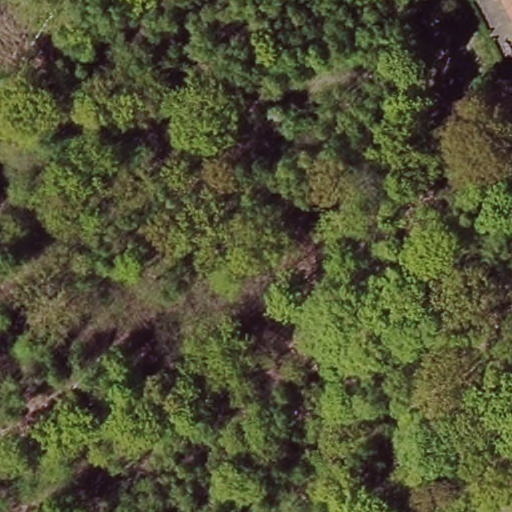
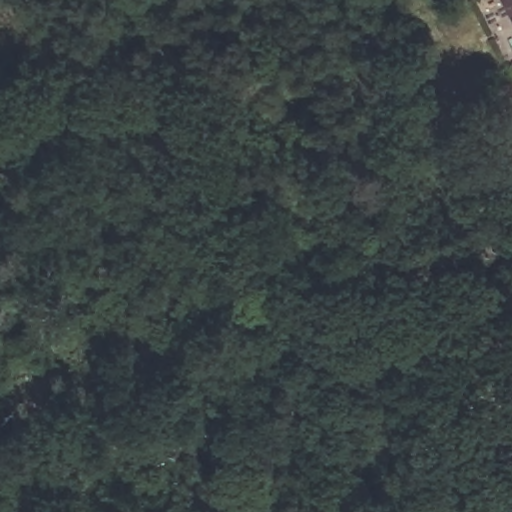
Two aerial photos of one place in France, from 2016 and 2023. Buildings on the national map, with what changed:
unchanged [(512,24),(499,0),(512,0),(512,24)]

